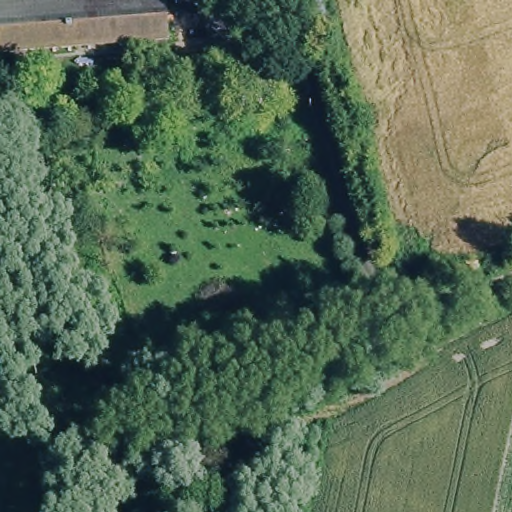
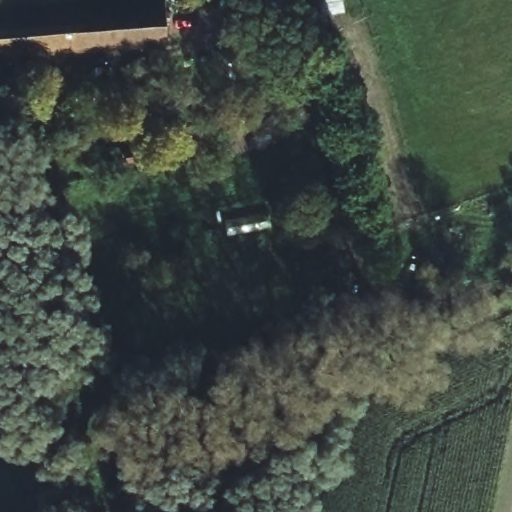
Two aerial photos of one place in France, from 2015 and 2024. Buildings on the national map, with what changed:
unchanged [(0,61),(0,11),(97,5),(97,0),(184,0),(187,48),(0,61)]

